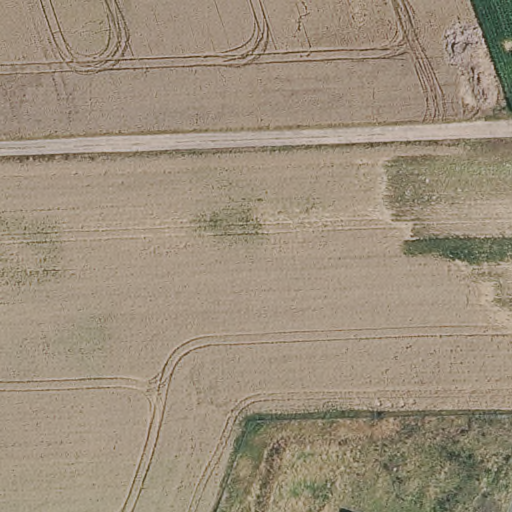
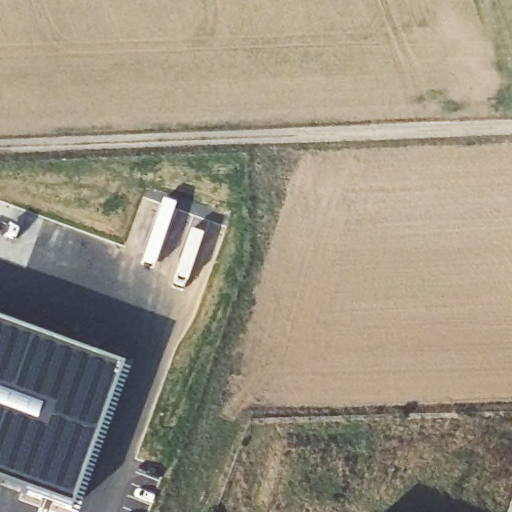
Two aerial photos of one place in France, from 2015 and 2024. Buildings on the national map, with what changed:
new [(91,452),(85,450),(66,506),(0,483),(0,327),(119,368),(105,393),(98,416),(103,418),(91,452)]

